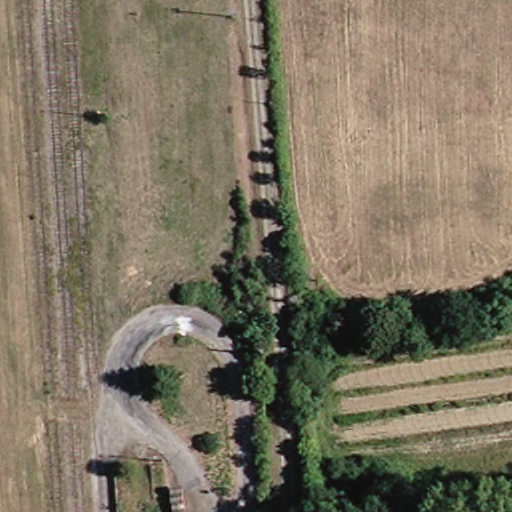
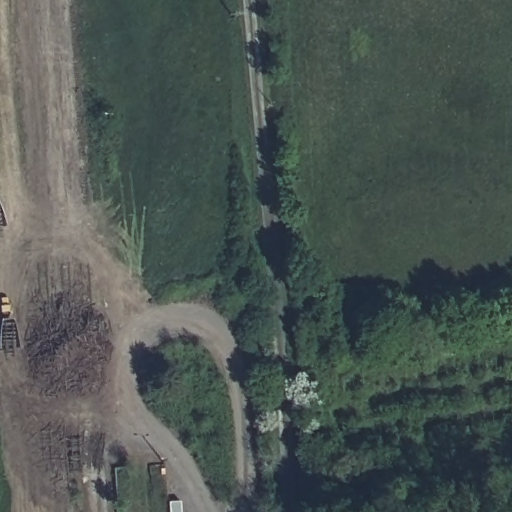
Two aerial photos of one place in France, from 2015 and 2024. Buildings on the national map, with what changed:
[]

